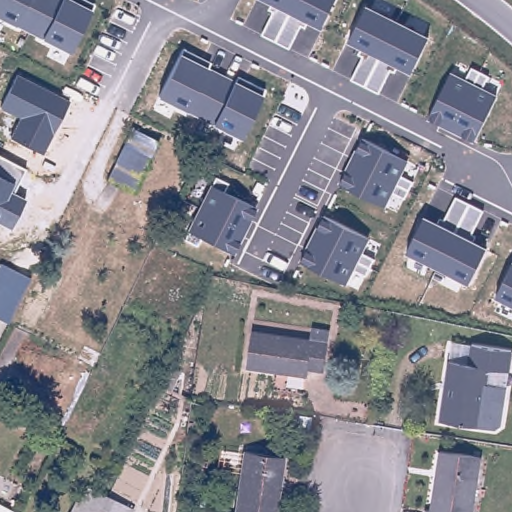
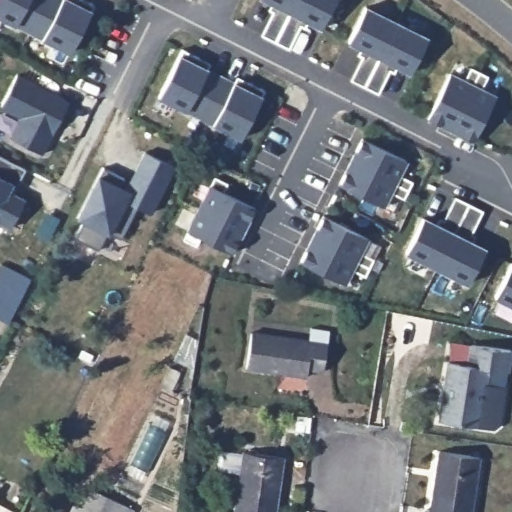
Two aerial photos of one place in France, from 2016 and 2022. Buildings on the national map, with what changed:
unchanged [(95,5),(70,53),(0,18),(0,0),(86,0),(95,5)]
unchanged [(261,36),(273,13),(269,10),(272,4),(262,0),(335,0),(321,29),(307,21),(305,28),(302,27),(289,49),(261,36)]
unchanged [(351,80),(362,58),(358,55),(361,49),(349,42),(367,8),(427,38),(410,74),(399,68),(395,74),(390,71),(379,94),(351,80)]
unchanged [(158,97),(184,50),(211,62),(208,67),(235,81),(237,75),(266,89),(242,140),(158,97)]
unchanged [(429,119),(452,74),(464,81),(470,67),(492,76),(483,90),(495,96),(476,140),(429,119)]
unchanged [(11,138),(19,119),(2,109),(18,76),(69,102),(41,153),(11,138)]
unchanged [(408,161),(401,173),(413,181),(404,200),(389,193),(383,204),(339,183),(362,140),(408,161)]
demolished [(151,160),(135,193),(106,181),(123,147),(151,160)]
new [(175,168),(153,214),(136,207),(120,239),(109,233),(97,251),(76,239),(85,224),(75,220),(97,175),(103,178),(104,169),(125,179),(123,189),(129,192),(145,153),(175,168)]
unchanged [(15,193),(25,197),(12,229),(0,223),(0,156),(25,169),(15,193)]
unchanged [(213,178),(226,182),(222,191),(255,205),(233,252),(200,235),(197,245),(184,239),(213,178)]
unchanged [(471,234),(476,237),(471,241),(485,248),(468,284),(405,251),(425,216),(436,223),(441,216),(445,219),(455,195),(484,209),(471,234)]
unchanged [(366,277),(353,270),(347,283),(301,260),(321,217),(369,239),(362,252),(375,258),(366,277)]
unchanged [(0,265),(1,264),(30,278),(8,323),(0,319),(0,265)]
unchanged [(496,299),(512,264),(512,307),(496,299)]
unchanged [(310,346),(312,333),(329,336),(323,376),(307,375),(306,381),(247,373),(252,337),(310,346)]
unchanged [(467,366),(470,346),(509,352),(505,372),(503,389),(497,426),(492,430),(437,422),(446,363),(467,366)]
unchanged [(427,512),(428,508),(433,508),(442,448),(482,453),(474,512),(427,512)]
unchanged [(233,512),(241,453),(281,461),(273,512),(233,512)]
unchanged [(135,512),(106,512),(113,498),(136,509),(135,512)]
unchanged [(101,512),(75,512),(80,502),(101,512)]

